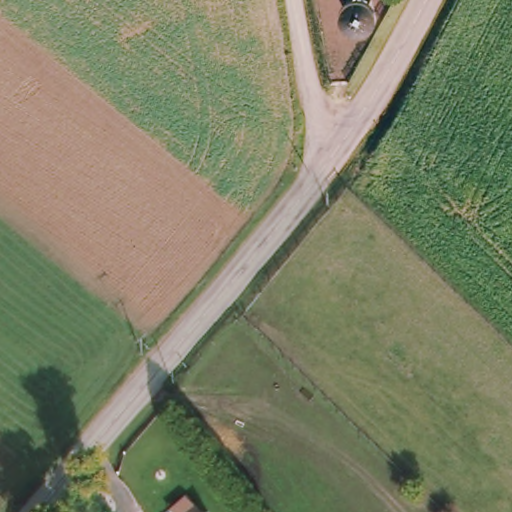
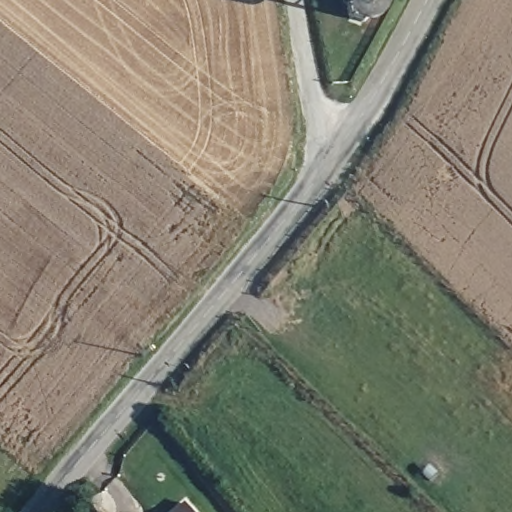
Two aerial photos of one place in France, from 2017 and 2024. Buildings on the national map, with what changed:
unchanged [(190,512),(184,512),(187,509),(190,512)]

